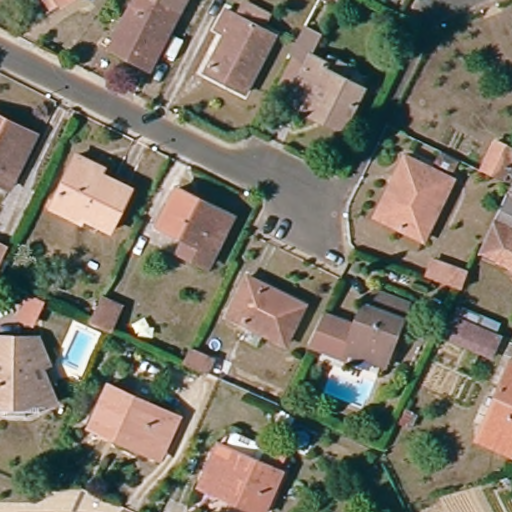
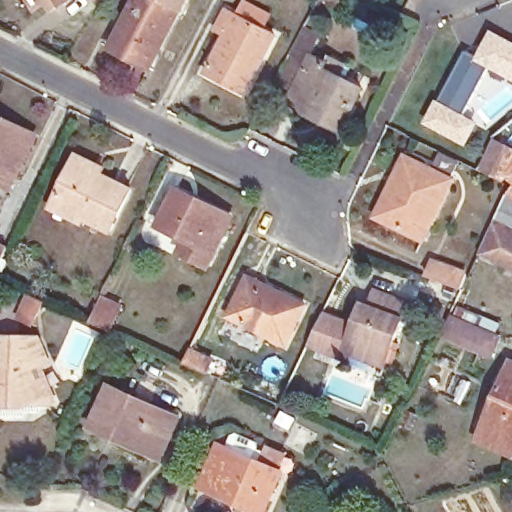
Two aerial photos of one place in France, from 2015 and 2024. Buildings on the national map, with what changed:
unchanged [(58,3),(49,10),(42,0),(63,0),(58,3)]
unchanged [(150,73),(136,67),(137,60),(113,48),(136,0),(186,0),(150,73)]
unchanged [(339,3),(332,0),(340,0),(339,3)]
unchanged [(243,104),(226,96),(230,88),(207,79),(226,39),(216,34),(227,14),(235,17),(241,4),(267,16),(261,29),(275,35),(243,104)]
new [(475,55),(489,28),(512,40),(512,81),(488,67),(474,57),(475,55)]
unchanged [(332,56),(329,64),(364,80),(347,118),(327,110),(324,116),(292,102),(297,89),(281,82),(291,59),(308,67),(316,49),(332,56)]
new [(462,49),(475,55),(474,57),(488,67),(464,113),(436,98),(462,49)]
new [(436,98),(464,113),(478,122),(465,145),(422,121),(436,98)]
unchanged [(0,177),(21,133),(0,123),(0,108),(40,127),(14,183),(0,177)]
unchanged [(0,177),(0,123),(21,133),(0,177)]
unchanged [(496,134),(512,141),(512,177),(482,165),(496,134)]
unchanged [(420,234),(383,216),(400,177),(394,173),(406,150),(451,170),(420,234)]
unchanged [(134,185),(114,225),(59,198),(80,151),(101,160),(99,167),(134,185)]
unchanged [(157,219),(176,181),(202,193),(200,198),(227,212),(219,229),(229,234),(215,262),(188,250),(192,236),(157,219)]
unchanged [(503,218),(500,216),(512,190),(512,259),(505,256),(489,249),(503,218)]
unchanged [(0,275),(0,238),(15,245),(0,275)]
unchanged [(432,276),(438,258),(475,273),(467,290),(432,276)]
unchanged [(306,297),(286,338),(230,312),(248,271),(306,297)]
unchanged [(366,305),(376,309),(384,293),(411,305),(386,364),(354,350),(349,360),(313,342),(327,309),(357,325),(366,305)]
unchanged [(13,315),(24,295),(29,298),(43,304),(31,325),(13,315)]
unchanged [(96,320),(106,296),(123,305),(113,328),(111,328),(96,320)]
unchanged [(447,333),(458,311),(507,332),(498,355),(447,333)]
unchanged [(51,402),(0,403),(0,341),(38,341),(43,363),(48,381),(44,382),(51,402)]
unchanged [(221,356),(213,374),(188,362),(196,344),(221,356)]
unchanged [(510,357),(512,358),(512,453),(476,438),(510,357)]
unchanged [(91,425),(111,381),(180,410),(164,445),(159,455),(108,432),(91,425)]
unchanged [(206,476),(223,439),(228,441),(231,434),(238,431),(252,437),(254,444),(251,451),(284,465),(265,509),(249,502),(203,482),(206,476)]

